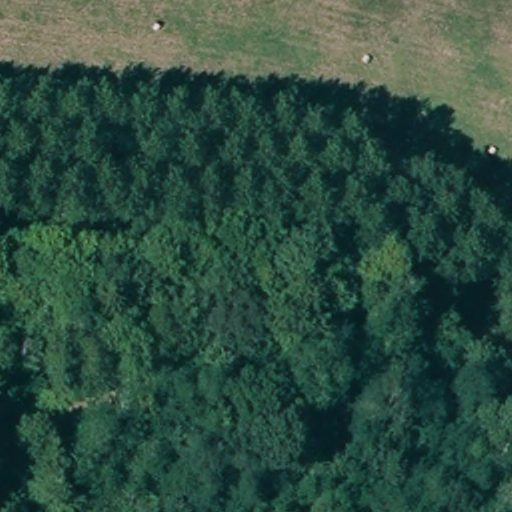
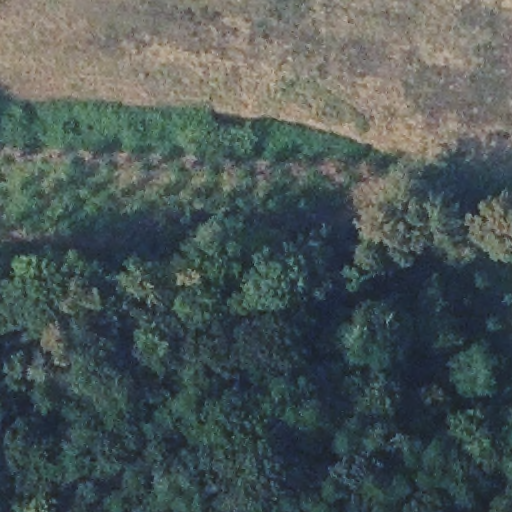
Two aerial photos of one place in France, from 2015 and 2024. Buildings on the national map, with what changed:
[]

